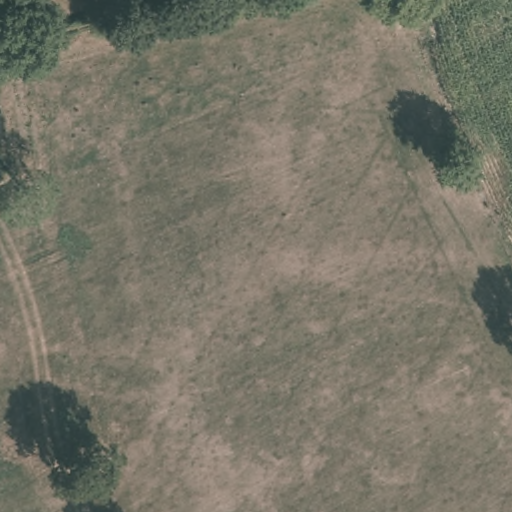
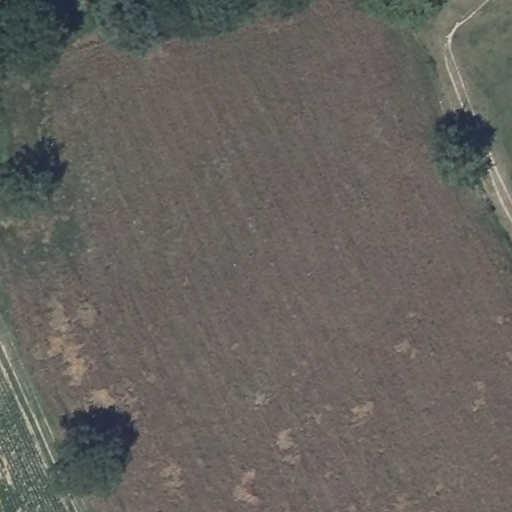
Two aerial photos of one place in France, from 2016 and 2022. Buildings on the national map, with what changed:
unchanged [(417,0),(422,0),(418,1),(417,0)]

